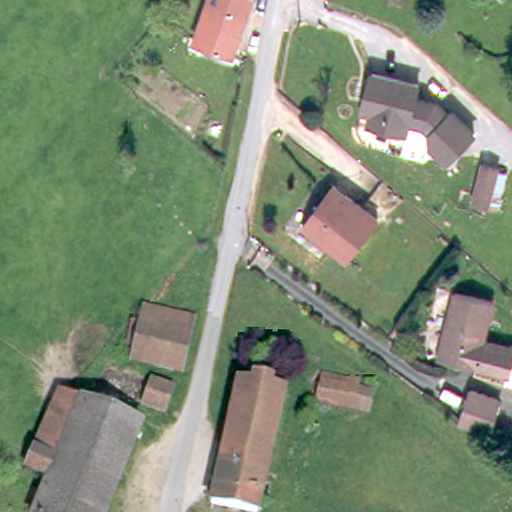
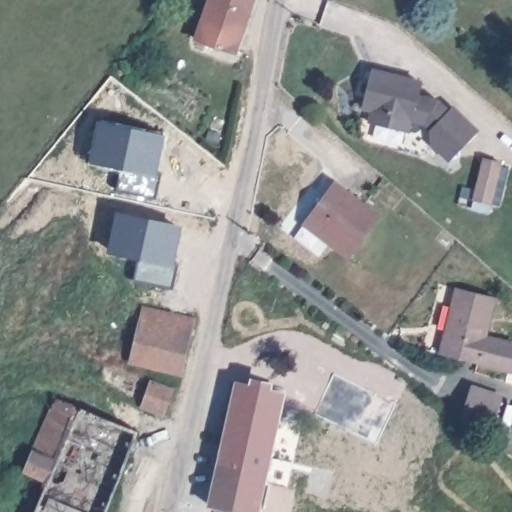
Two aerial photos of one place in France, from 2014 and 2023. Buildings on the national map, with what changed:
unchanged [(212,0),(251,0),(235,52),(200,40),(212,0)]
unchanged [(368,94),(372,71),(420,83),(407,133),(368,124),(372,111),(365,109),(368,94)]
unchanged [(439,97),(480,130),(450,160),(432,143),(430,125),(411,118),(417,92),(439,97)]
new [(102,124),(160,137),(152,171),(160,173),(155,198),(115,189),(120,165),(94,159),(102,124)]
unchanged [(480,174),(498,176),(490,222),(472,220),(480,174)]
unchanged [(350,258),(306,221),(341,183),(383,220),(350,258)]
new [(177,227),(170,261),(177,263),(172,288),(133,279),(138,255),(112,249),(120,214),(177,227)]
unchanged [(510,370),(446,350),(465,288),(504,299),(492,337),(512,343),(512,370),(510,370)]
unchanged [(147,333),(151,314),(202,322),(194,372),(142,365),(144,355),(135,353),(138,331),(147,333)]
unchanged [(364,411),(349,407),(314,399),(320,372),(355,380),(353,387),(369,390),(364,411)]
unchanged [(148,384),(175,390),(169,417),(141,411),(148,384)]
unchanged [(507,394),(500,424),(468,415),(477,384),(507,394)]
unchanged [(292,400),(267,512),(222,512),(218,511),(245,389),(292,400)]
unchanged [(41,512),(42,508),(33,506),(42,486),(50,491),(60,461),(37,454),(59,395),(145,428),(113,512),(41,512)]

